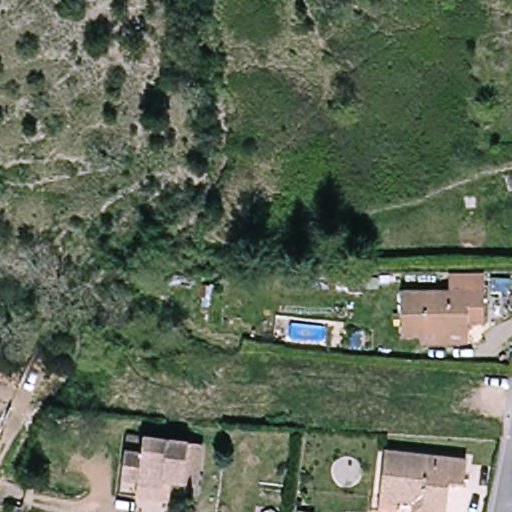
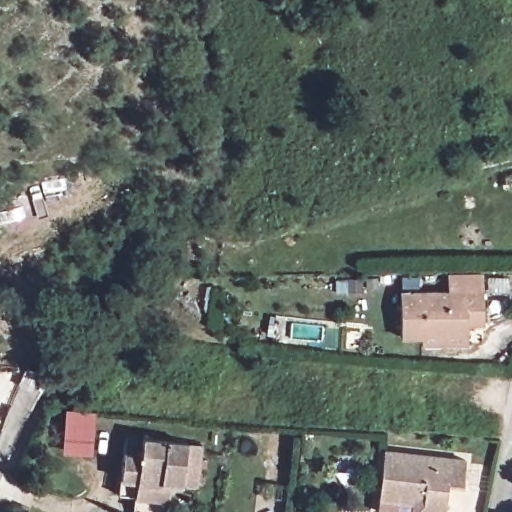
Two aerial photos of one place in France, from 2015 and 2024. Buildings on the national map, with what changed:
unchanged [(425,342),(401,343),(403,292),(447,292),(447,272),(482,272),(483,291),(484,322),(467,322),(467,330),(467,342),(425,342)]
new [(96,411),(93,455),(65,453),(67,408),(96,411)]
unchanged [(170,477),(168,512),(140,512),(139,508),(131,507),(132,495),(115,493),(118,450),(120,432),(135,434),(197,440),(193,478),(170,477)]
unchanged [(469,465),(465,487),(450,485),(444,512),(416,512),(417,504),(382,498),(390,451),(469,465)]

